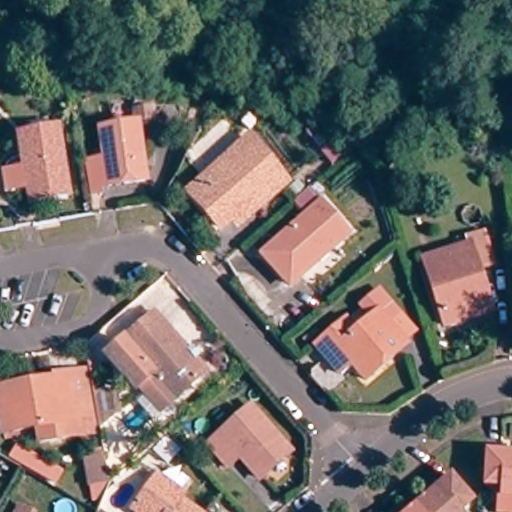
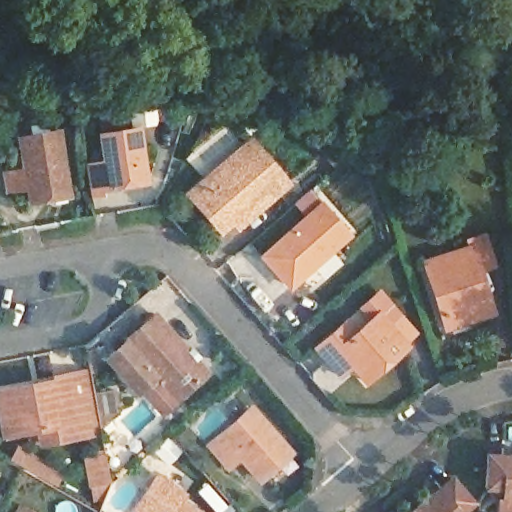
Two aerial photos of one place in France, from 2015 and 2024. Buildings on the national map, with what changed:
unchanged [(138,131),(149,184),(92,196),(85,165),(104,161),(99,139),(138,131)]
unchanged [(323,131),(341,151),(328,164),(309,143),(323,131)]
unchanged [(27,204),(24,188),(9,191),(5,168),(19,164),(14,140),(57,132),(70,194),(27,204)]
unchanged [(224,218),(215,227),(185,194),(244,138),(280,178),(256,202),(232,226),(224,218)]
unchanged [(263,261),(304,222),(290,206),(303,195),(344,240),(288,290),(263,261)]
unchanged [(420,263),(457,248),(455,243),(481,234),(491,261),(473,267),(488,311),(442,328),(433,302),(427,283),(420,263)]
unchanged [(363,385),(335,354),(321,367),(309,353),(322,341),(338,326),(350,339),(373,316),(361,304),(372,294),(393,315),(414,338),(404,348),(389,362),(377,373),(363,385)]
unchanged [(163,410),(109,354),(153,312),(207,369),(163,410)]
unchanged [(35,439),(0,447),(0,445),(0,399),(47,388),(46,384),(64,380),(83,376),(94,425),(76,428),(79,441),(39,452),(35,439)]
unchanged [(101,394),(115,389),(121,413),(105,417),(101,394)]
unchanged [(219,434),(247,408),(291,453),(260,478),(242,459),(230,471),(206,446),(219,434)]
unchanged [(495,512),(496,496),(489,496),(490,485),(475,485),(476,452),(512,454),(512,512),(495,512)]
unchanged [(101,455),(104,470),(107,484),(88,488),(81,459),(101,455)]
unchanged [(152,473),(178,490),(173,496),(197,512),(131,512),(127,509),(152,473)]
unchanged [(472,504),(463,512),(418,512),(415,509),(450,480),(472,504)]
unchanged [(33,512),(13,512),(17,503),(33,512)]
unchanged [(418,512),(413,512),(415,509),(418,512)]

